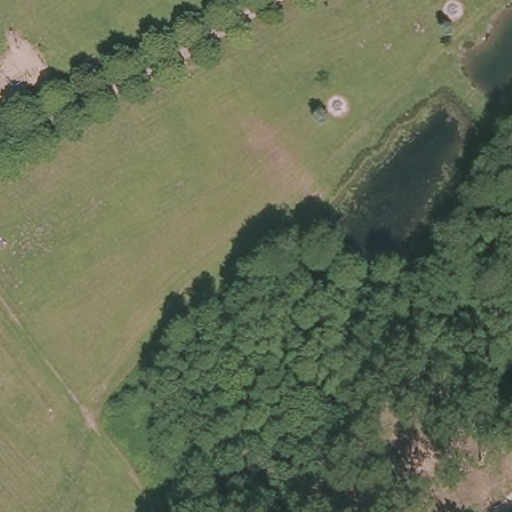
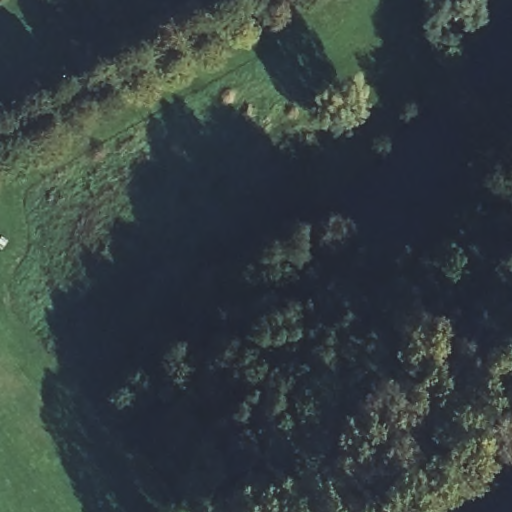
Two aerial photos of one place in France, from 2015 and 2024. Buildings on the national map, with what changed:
[]

